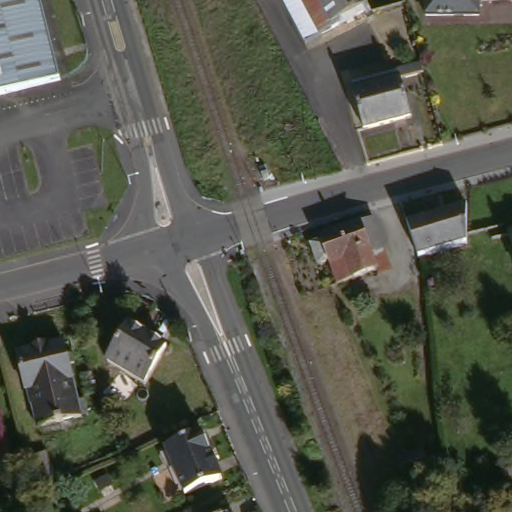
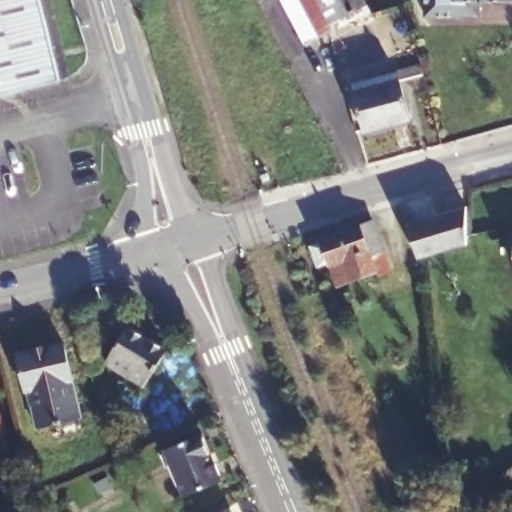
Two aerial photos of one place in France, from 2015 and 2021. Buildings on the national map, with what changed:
unchanged [(72,71),(0,94),(0,0),(50,0),(72,71)]
unchanged [(277,1),(276,0),(361,0),(367,12),(299,45),(277,1)]
unchanged [(512,2),(481,2),(481,11),(481,20),(428,19),(428,0),(512,0),(512,2)]
unchanged [(400,86),(409,125),(363,136),(351,89),(421,72),(423,79),(423,81),(400,86)]
unchanged [(406,231),(463,213),(463,243),(415,258),(405,231),(406,231)]
unchanged [(324,240),(323,237),(375,218),(385,246),(371,251),(377,267),(339,281),(333,260),(319,265),(312,244),(324,240)]
unchanged [(512,264),(507,243),(512,242),(512,264)]
unchanged [(142,326),(178,350),(157,385),(120,364),(142,326)]
unchanged [(69,342),(76,374),(88,415),(51,424),(41,392),(36,393),(33,382),(25,353),(69,342)]
unchanged [(216,438),(234,482),(196,497),(178,453),(216,438)]
unchanged [(51,452),(58,474),(46,478),(37,459),(36,456),(51,452)]
unchanged [(423,456),(430,475),(404,484),(397,465),(423,456)]
unchanged [(501,476),(512,472),(512,492),(509,493),(501,476)]

